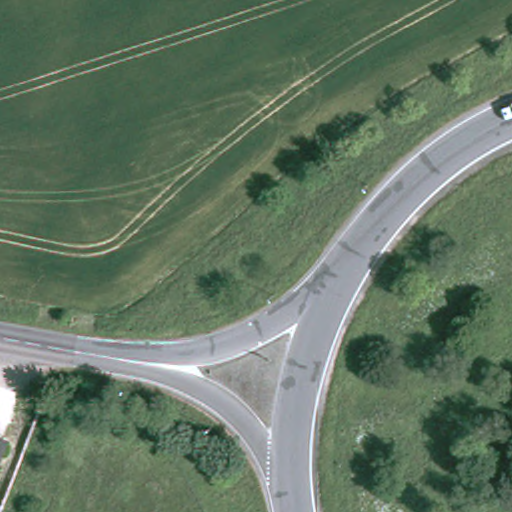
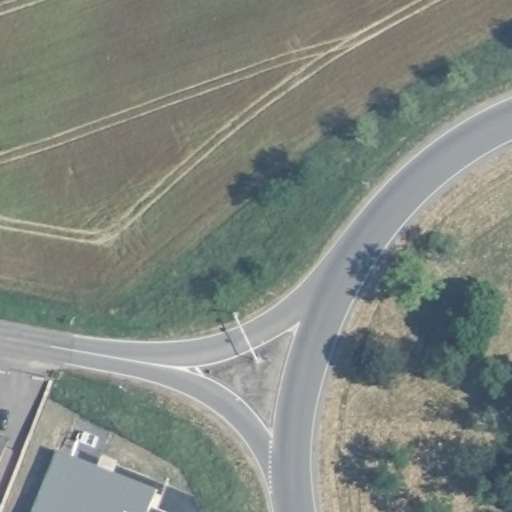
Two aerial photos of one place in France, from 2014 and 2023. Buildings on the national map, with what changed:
unchanged [(0,463),(0,439),(8,442),(0,463)]
new [(60,451),(159,491),(150,512),(35,512),(60,451)]

